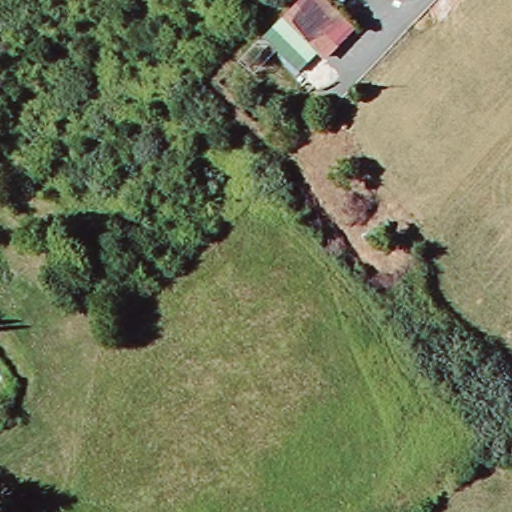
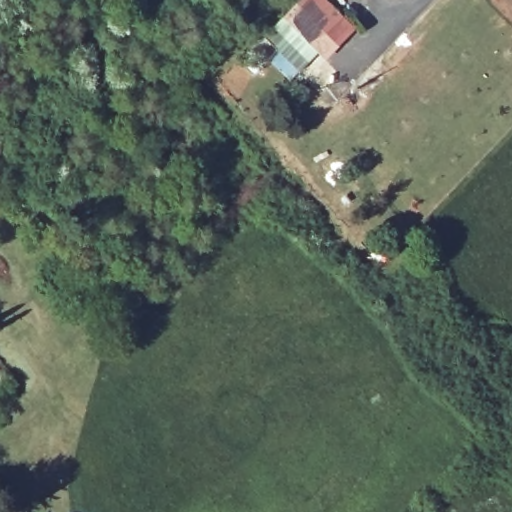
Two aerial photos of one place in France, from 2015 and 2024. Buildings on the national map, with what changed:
unchanged [(283,16),(300,0),(326,0),(352,30),(323,59),(316,52),(297,71),(273,50),(254,76),(238,60),(283,16)]

